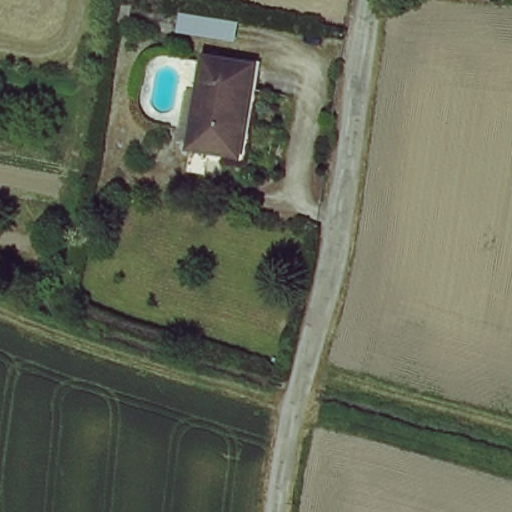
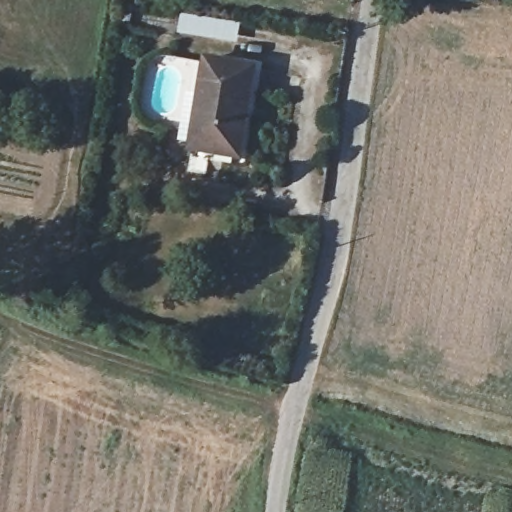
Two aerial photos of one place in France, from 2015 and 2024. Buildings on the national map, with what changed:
unchanged [(259,82),(246,162),(198,154),(211,74),(259,82)]

